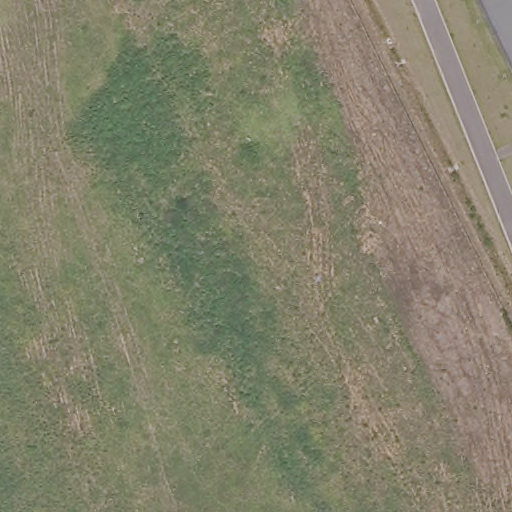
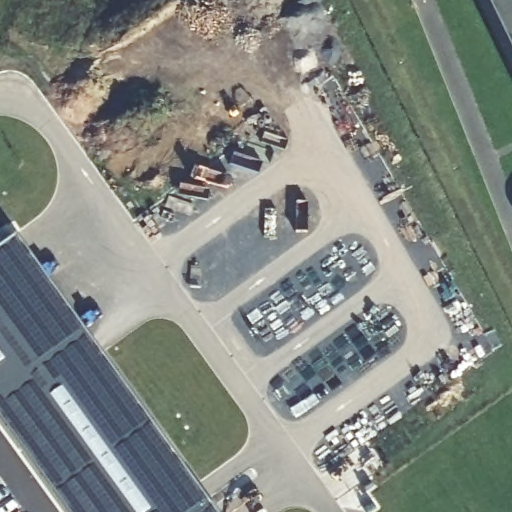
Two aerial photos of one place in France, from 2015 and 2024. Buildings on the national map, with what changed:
unchanged [(480,0),(512,0),(512,64),(480,0)]
new [(0,249),(14,239),(214,512),(66,512),(0,421),(0,249)]

